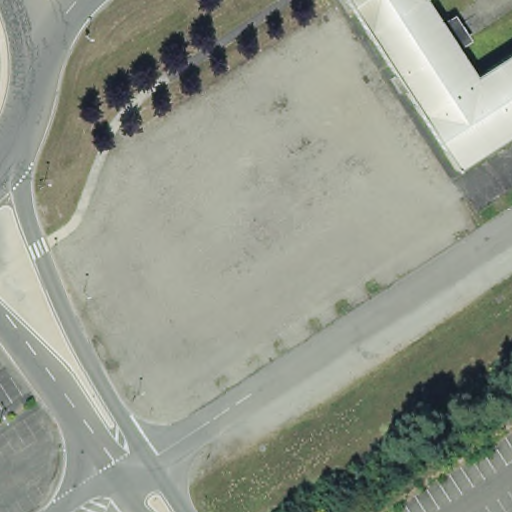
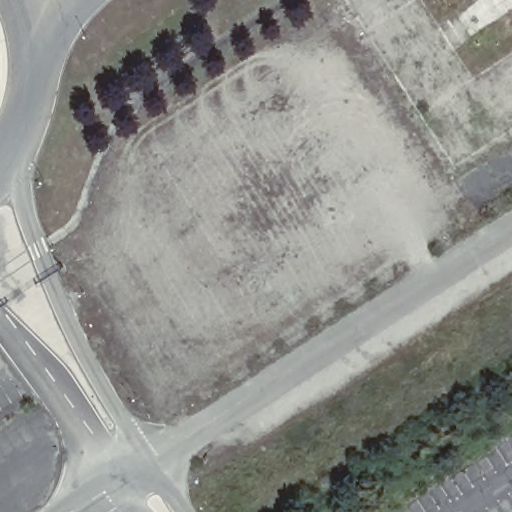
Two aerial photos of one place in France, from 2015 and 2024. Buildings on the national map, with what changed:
demolished [(454,54),(465,73),(512,45),(512,116),(442,158),(346,0),(420,0),(430,16),(445,6),(469,43),(454,54)]

